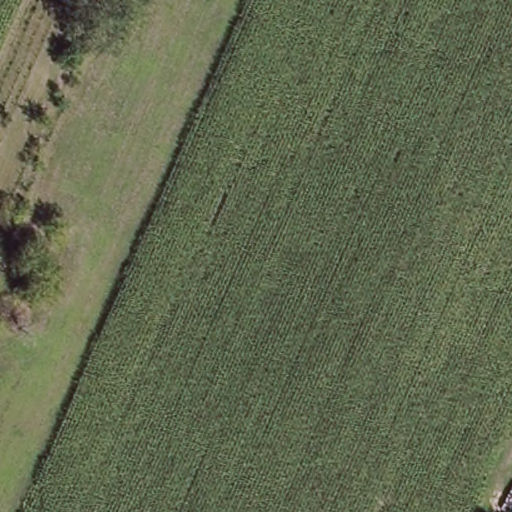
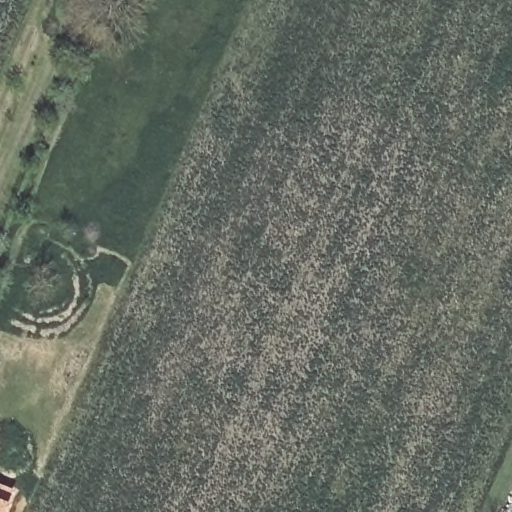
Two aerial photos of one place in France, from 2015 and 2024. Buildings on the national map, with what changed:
new [(13,489),(5,512),(0,512),(0,483),(13,489)]

